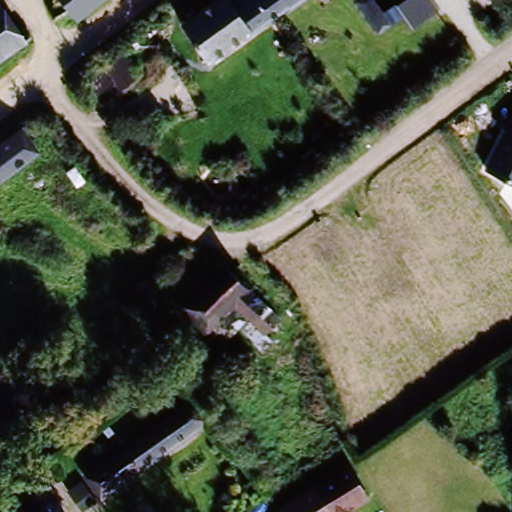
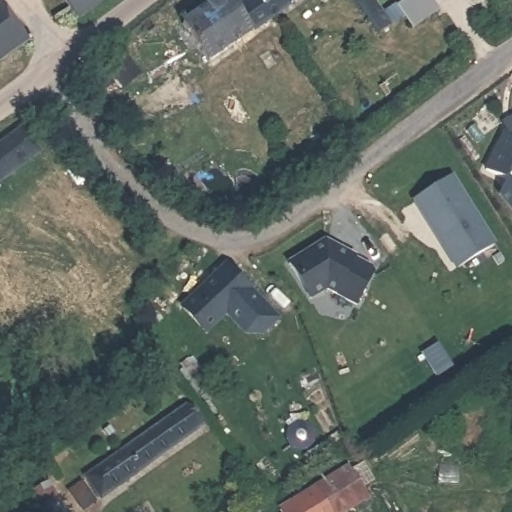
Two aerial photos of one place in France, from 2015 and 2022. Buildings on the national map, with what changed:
unchanged [(81,7),(67,18),(56,0),(104,0),(86,14),(81,7)]
unchanged [(217,57),(197,26),(231,0),(236,0),(241,7),(250,0),(268,0),(279,17),(217,57)]
unchanged [(268,0),(304,0),(279,17),(268,0)]
unchanged [(399,1),(400,0),(446,0),(412,23),(399,1)]
unchanged [(0,53),(0,10),(20,39),(0,53)]
unchanged [(43,145),(0,176),(0,142),(25,122),(43,145)]
unchanged [(487,169),(501,137),(512,130),(512,182),(487,169)]
new [(441,244),(415,200),(454,177),(495,246),(458,268),(456,269),(441,244)]
new [(326,241),(357,257),(356,258),(372,266),(374,272),(357,305),(327,289),(312,299),(290,263),(326,241)]
unchanged [(187,302),(232,270),(277,327),(260,342),(237,309),(206,330),(187,302)]
unchanged [(204,426),(95,494),(85,475),(190,405),(204,426)]
unchanged [(280,507),(286,503),(315,483),(316,489),(336,479),(355,471),(367,502),(348,509),(343,512),(283,512),(280,507)]

